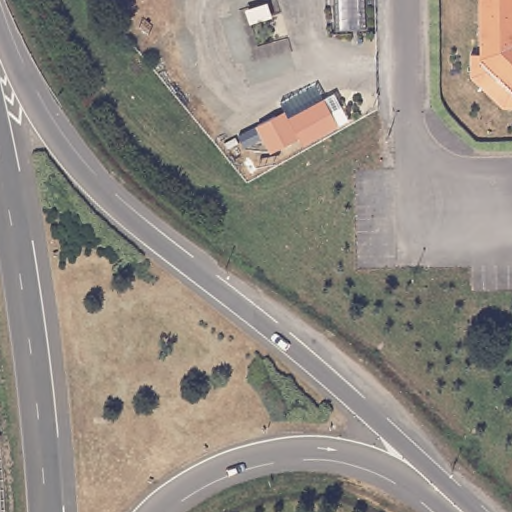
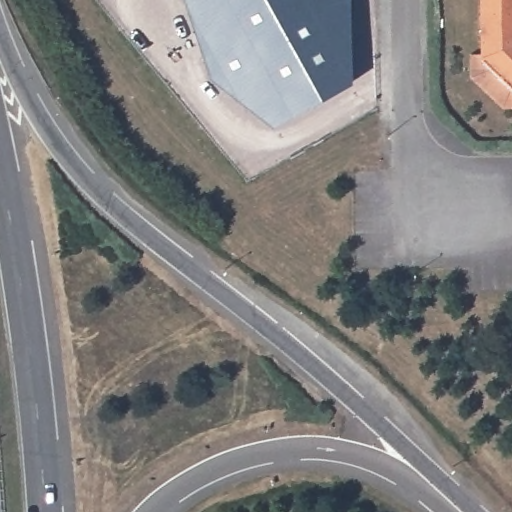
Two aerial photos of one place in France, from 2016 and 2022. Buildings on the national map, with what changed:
new [(351,81),(271,124),(209,76),(183,0),(350,0),(351,81)]
demolished [(364,26),(333,29),(332,0),(363,0),(364,26)]
unchanged [(467,83),(467,59),(477,59),(477,0),(512,0),(512,113),(500,113),(467,83)]
demolished [(318,87),(325,99),(332,94),(345,122),(301,145),(297,137),(270,154),(261,140),(244,148),(237,135),(318,87)]

